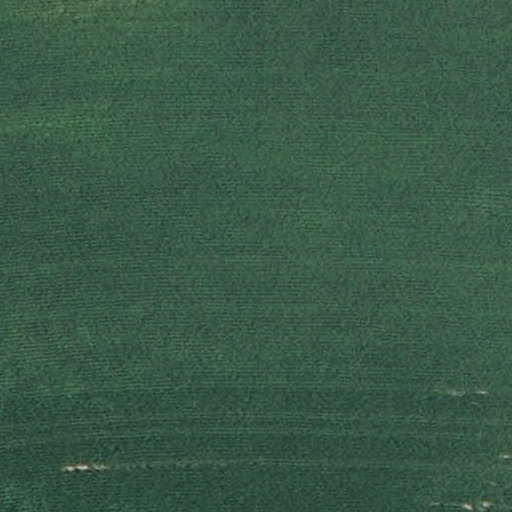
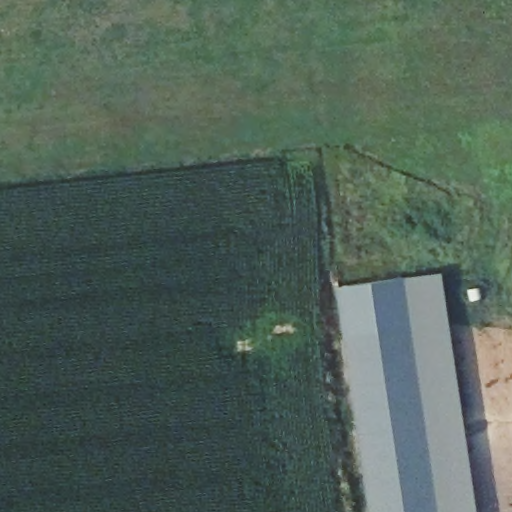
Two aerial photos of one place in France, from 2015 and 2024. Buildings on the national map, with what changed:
new [(412,328),(343,336),(335,286),(442,271),(476,512),(439,512),(412,328)]
new [(439,512),(368,512),(343,336),(412,328),(439,512)]

